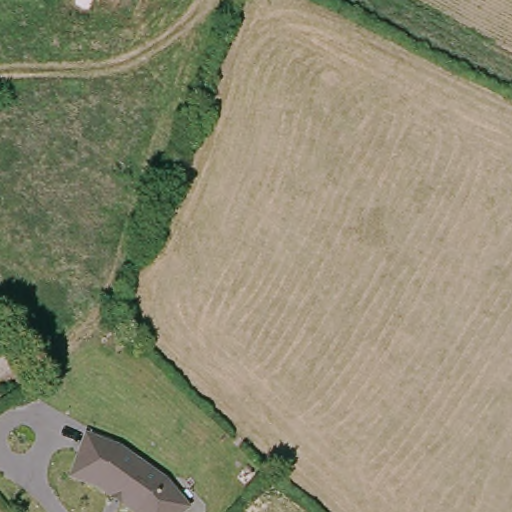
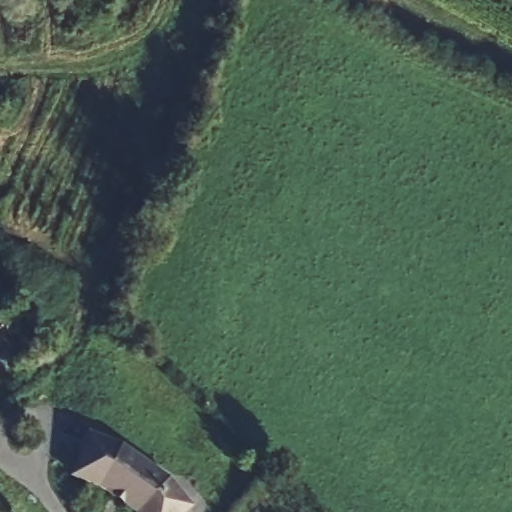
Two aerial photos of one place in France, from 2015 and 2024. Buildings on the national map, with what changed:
unchanged [(100,489),(68,477),(85,430),(121,444),(170,480),(190,506),(184,512),(130,512),(100,489)]

